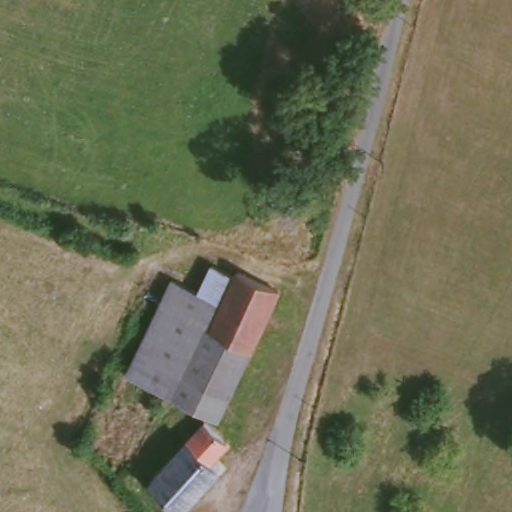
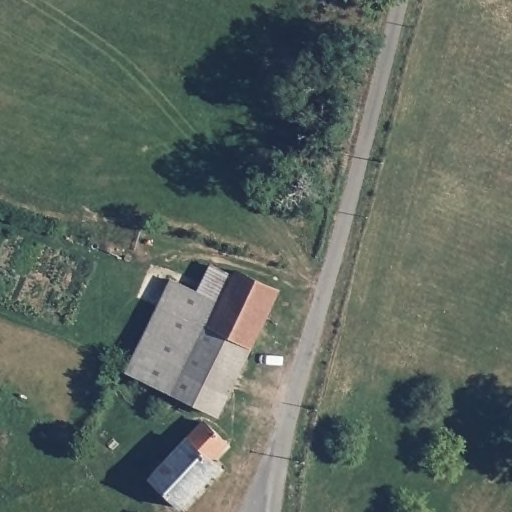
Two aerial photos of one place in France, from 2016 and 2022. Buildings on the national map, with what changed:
unchanged [(215,417),(124,375),(167,275),(201,290),(210,268),(228,276),(270,296),(215,417)]
unchanged [(150,482),(204,423),(224,442),(207,461),(215,469),(178,509),(150,482)]

